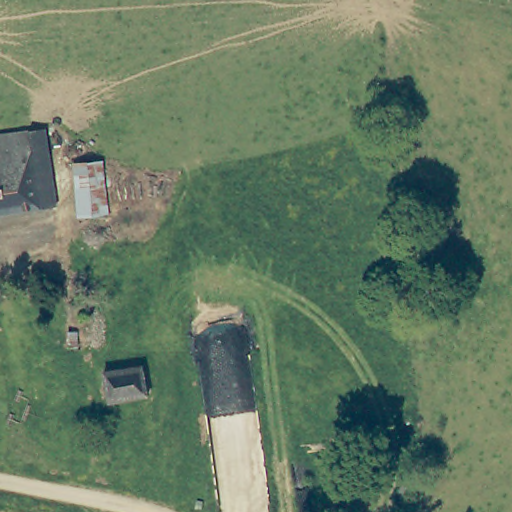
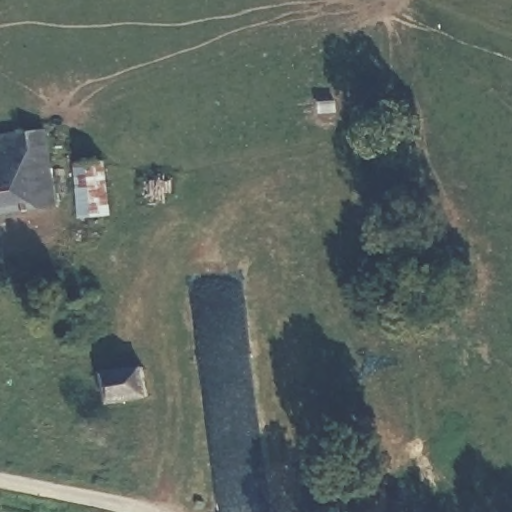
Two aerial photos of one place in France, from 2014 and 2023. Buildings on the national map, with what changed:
unchanged [(26,167),(23,135),(22,125),(52,124),(56,162),(56,165),(46,166),(26,167)]
unchanged [(23,135),(26,167),(46,166),(50,212),(0,217),(0,137),(23,135)]
unchanged [(82,224),(78,224),(78,165),(78,157),(106,157),(105,224),(100,224),(82,224)]
unchanged [(150,398),(111,398),(110,374),(150,372),(150,398)]

